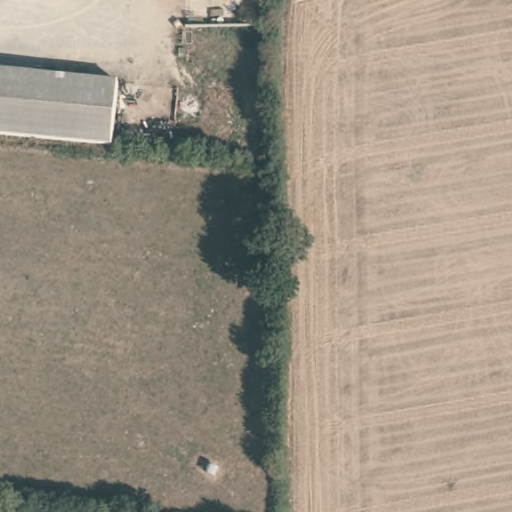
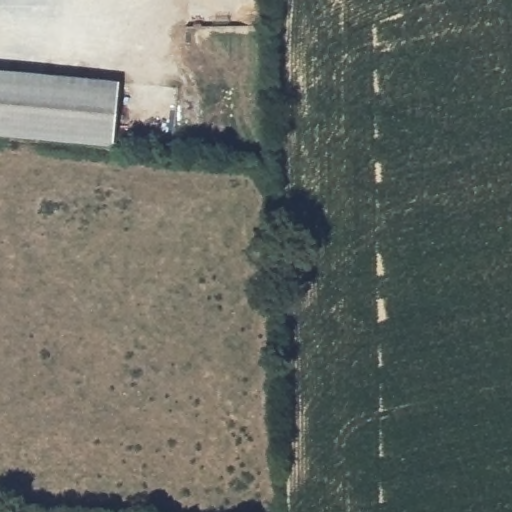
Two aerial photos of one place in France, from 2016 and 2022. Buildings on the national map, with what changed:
unchanged [(119,84),(112,146),(0,134),(0,70),(119,84)]

